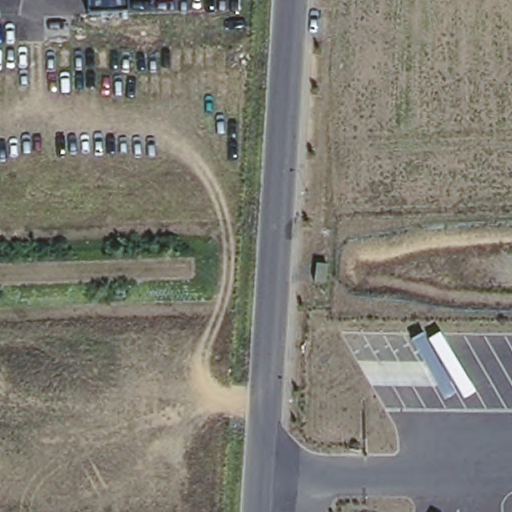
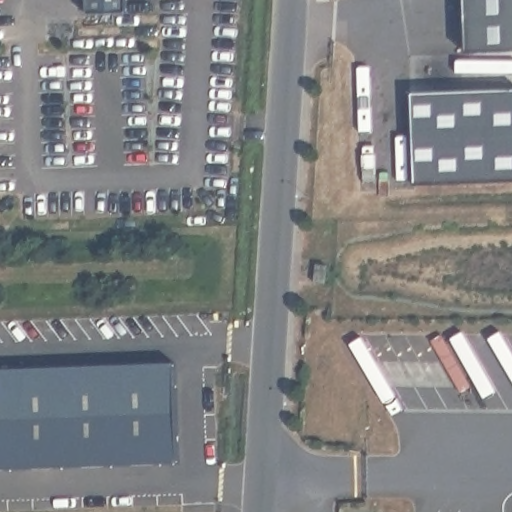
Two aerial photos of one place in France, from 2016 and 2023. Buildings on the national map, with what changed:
unchanged [(126,10),(87,11),(87,0),(125,0),(126,10)]
new [(512,62),(466,63),(464,0),(512,0),(512,62)]
new [(176,358),(176,466),(0,470),(0,362),(176,358)]

